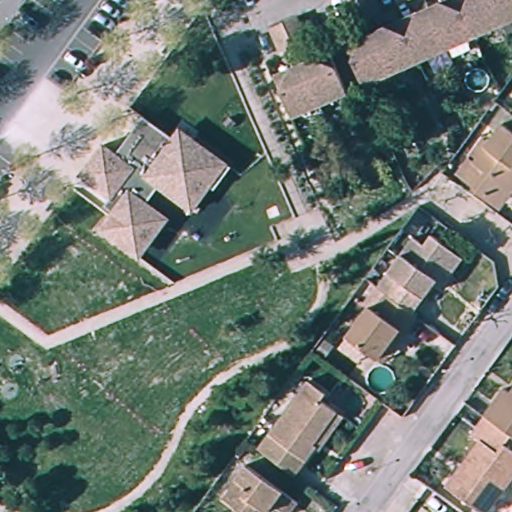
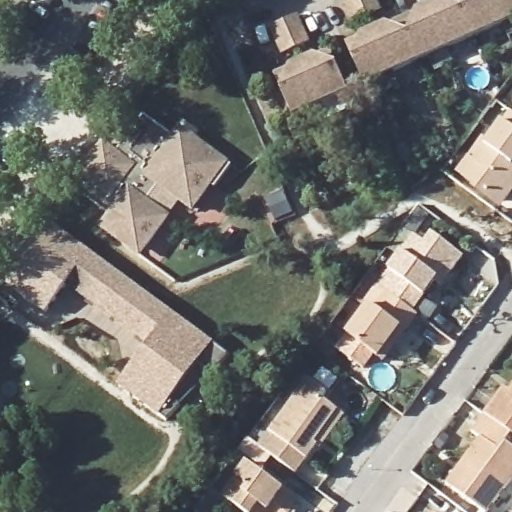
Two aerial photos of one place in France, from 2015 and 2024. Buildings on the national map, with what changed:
unchanged [(350,22),(341,3),(340,0),(373,0),(377,10),(350,22)]
unchanged [(350,43),(447,0),(512,0),(512,23),(369,85),(350,43)]
unchanged [(297,23),(305,41),(278,53),(270,34),(267,27),(294,15),(297,23)]
unchanged [(348,92),(293,116),(292,113),(290,109),(275,74),(329,50),(348,92)]
unchanged [(102,143),(110,148),(116,153),(142,116),(184,146),(190,139),(194,141),(232,169),(215,192),(211,189),(193,214),(159,189),(149,203),(167,217),(149,242),(147,244),(146,245),(145,246),(142,248),(140,249),(137,249),(134,249),(129,248),(128,247),(126,246),(120,242),(100,227),(119,202),(87,179),(80,174),(102,143)]
unchanged [(507,124),(512,127),(512,191),(477,164),(507,124)]
new [(148,346),(66,285),(45,313),(3,281),(48,220),(228,356),(213,374),(200,364),(173,400),(180,406),(166,419),(161,415),(158,417),(118,387),(148,346)]
unchanged [(436,284),(415,313),(390,295),(380,289),(415,239),(426,247),(433,236),(464,258),(452,274),(442,288),(436,284)]
unchanged [(380,359),(350,339),(362,323),(367,327),(390,295),(415,313),(421,318),(398,349),(386,364),(380,359)]
unchanged [(324,446),(322,444),(299,474),(263,447),(313,379),(332,392),(328,398),(342,409),(348,413),(324,446)]
unchanged [(506,390),(512,394),(512,434),(487,416),(506,390)]
unchanged [(505,444),(512,450),(512,480),(489,512),(485,512),(450,486),(483,441),(473,434),(487,416),(512,434),(512,435),(505,444)]
unchanged [(291,496),(280,511),(268,502),(259,512),(241,512),(216,493),(241,459),(291,496)]

